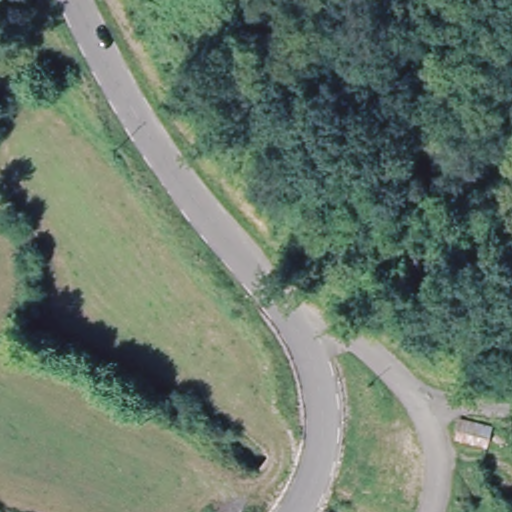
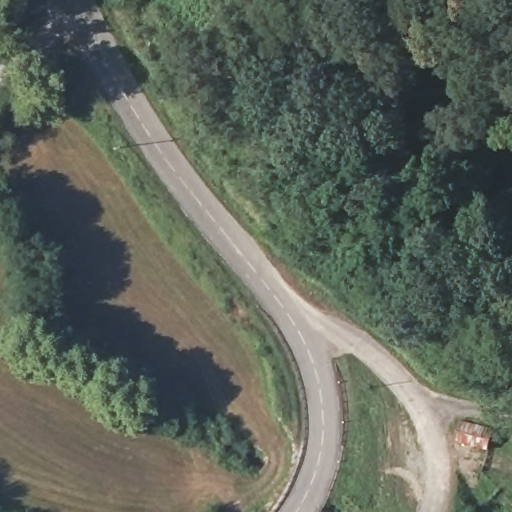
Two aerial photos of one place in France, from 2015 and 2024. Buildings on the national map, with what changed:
unchanged [(459,430),(463,401),(493,407),(486,438),(481,436),(459,430)]

